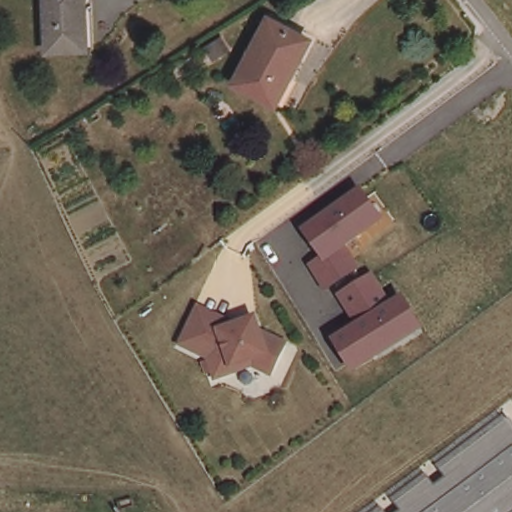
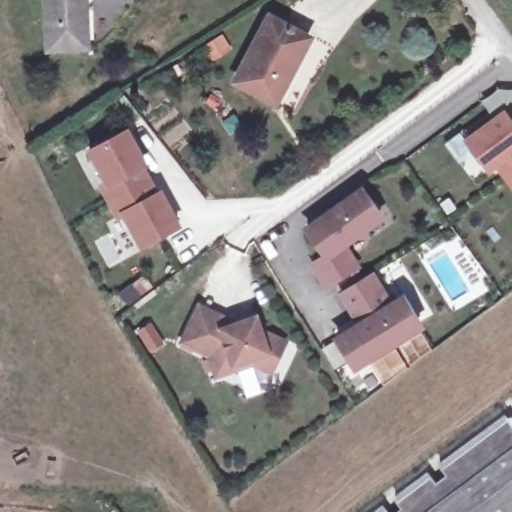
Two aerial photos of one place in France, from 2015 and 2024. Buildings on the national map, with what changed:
unchanged [(94,4),(88,5),(89,52),(52,54),(50,0),(94,0),(94,4)]
unchanged [(271,21),(312,38),(287,99),(245,81),(271,21)]
new [(489,175),(463,140),(504,109),(512,119),(512,190),(497,169),(489,175)]
new [(102,186),(108,183),(90,151),(126,132),(144,165),(141,167),(156,195),(160,193),(178,226),(141,246),(124,213),(118,216),(102,186)]
unchanged [(386,221),(350,246),(362,267),(328,290),(311,264),(323,258),(302,229),(364,189),(386,221)]
unchanged [(356,374),(336,337),(359,323),(339,295),(375,272),(393,301),(406,294),(426,329),(356,374)]
unchanged [(218,376),(211,356),(185,342),(199,315),(203,307),(238,326),(258,319),(264,337),(269,336),(286,345),(271,373),(254,365),(237,370),(218,376)]
unchanged [(512,512),(401,512),(404,511),(396,498),(429,475),(438,484),(449,477),(444,467),(512,417),(512,512)]
unchanged [(386,512),(379,512),(384,509),(386,512)]

